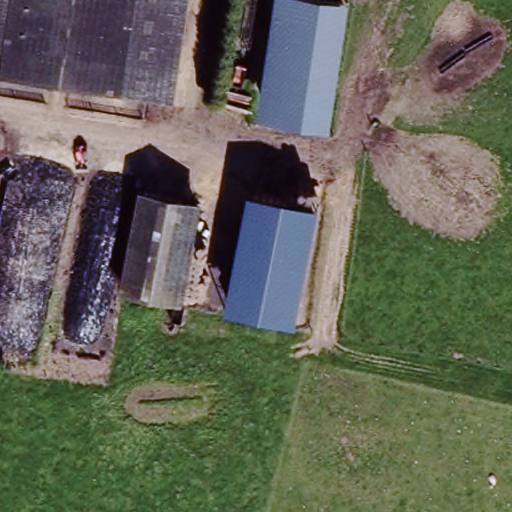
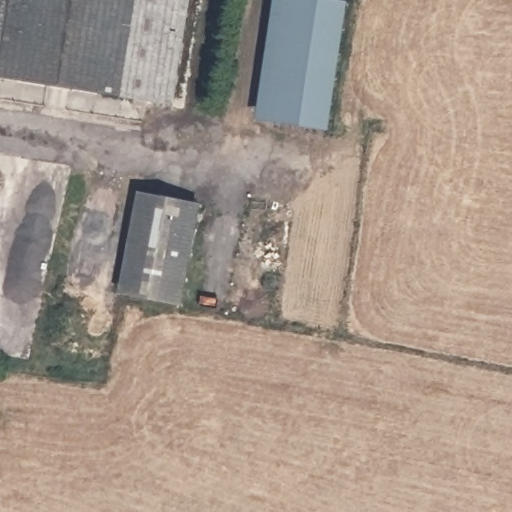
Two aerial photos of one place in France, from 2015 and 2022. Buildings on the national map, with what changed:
unchanged [(0,56),(0,0),(12,0),(11,56),(0,56)]
unchanged [(0,82),(0,56),(11,56),(12,0),(137,0),(136,84),(0,82)]
unchanged [(137,0),(188,0),(186,85),(136,84),(137,0)]
unchanged [(271,123),(255,121),(273,0),(329,0),(349,2),(330,132),(271,123)]
demolished [(319,209),(295,327),(223,313),(246,194),(319,209)]
unchanged [(132,202),(195,204),(194,291),(194,305),(130,302),(132,269),(132,202)]

